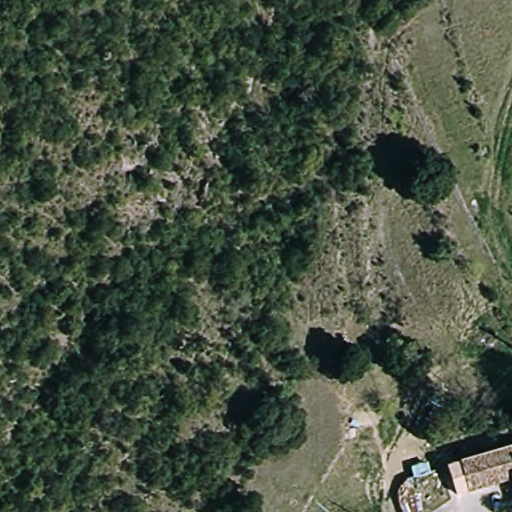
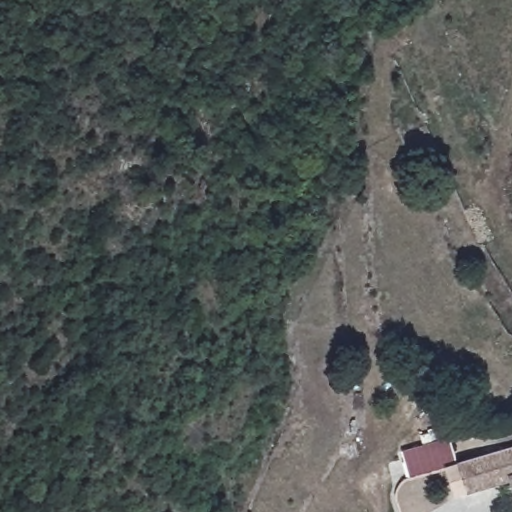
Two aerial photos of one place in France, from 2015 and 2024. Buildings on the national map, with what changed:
new [(450,438),(457,465),(448,468),(410,479),(402,451),(450,438)]
unchanged [(448,468),(512,449),(512,473),(454,488),(448,468)]
unchanged [(457,496),(454,488),(512,473),(512,480),(457,496)]

